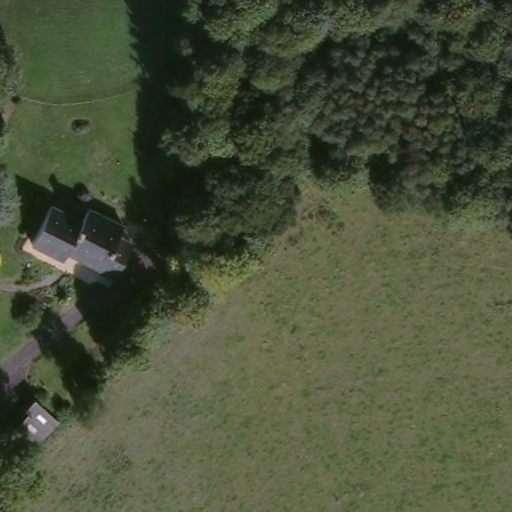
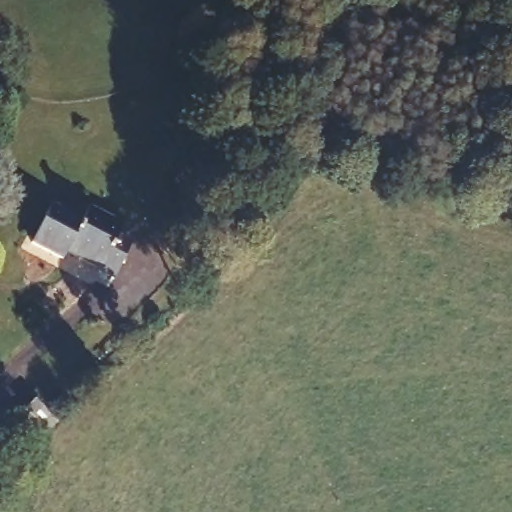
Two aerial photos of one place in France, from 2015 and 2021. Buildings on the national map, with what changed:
unchanged [(77,225),(86,211),(122,229),(116,240),(131,249),(112,283),(62,258),(58,264),(30,248),(51,211),(77,225)]
unchanged [(25,414),(20,408),(31,398),(53,420),(24,450),(6,433),(25,414)]

